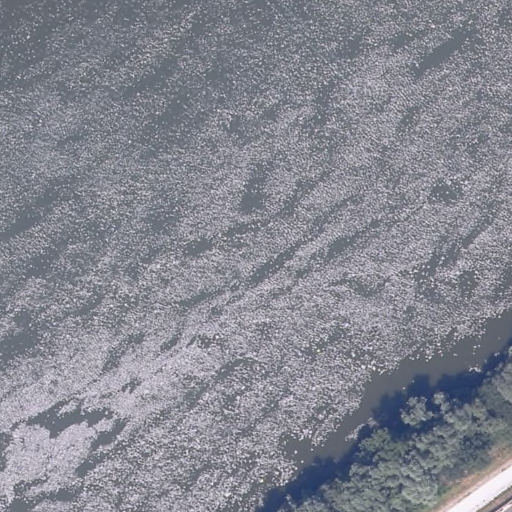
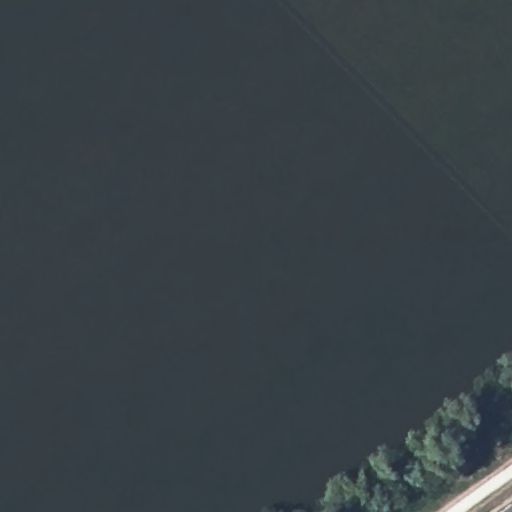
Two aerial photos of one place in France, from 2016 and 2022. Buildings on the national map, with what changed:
[]

